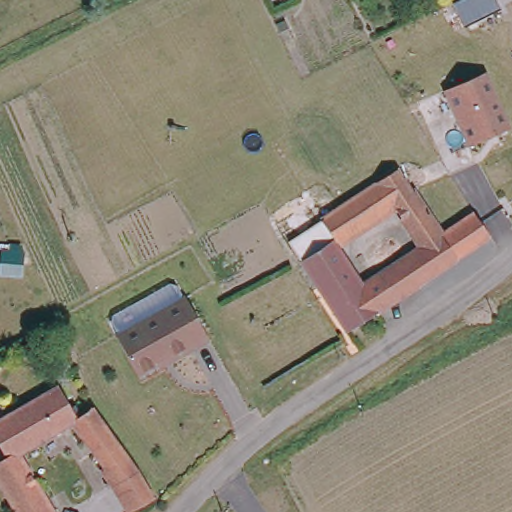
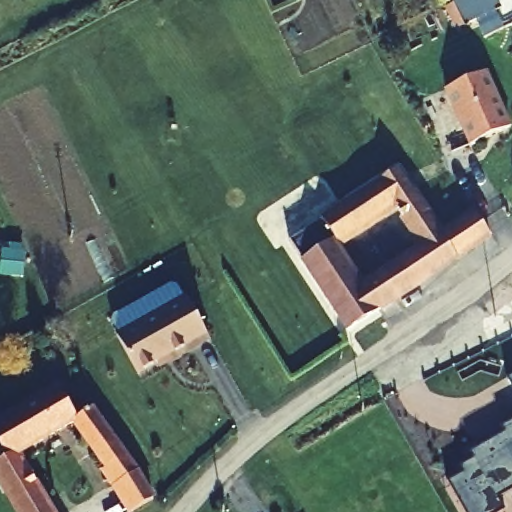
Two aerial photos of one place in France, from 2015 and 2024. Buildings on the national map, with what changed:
new [(459,0),(496,0),(501,9),(455,30),(443,8),(459,0)]
unchanged [(444,91),(487,73),(512,126),(470,145),(444,91)]
unchanged [(346,324),(302,257),(293,243),(292,243),(288,236),(363,187),(370,183),(380,176),(371,162),(388,150),(413,186),(441,229),(475,207),(482,217),(490,229),(402,288),(393,293),(377,304),(346,324)]
unchanged [(209,339),(190,349),(187,345),(138,372),(117,334),(187,294),(209,339)]
new [(507,378),(512,376),(512,386),(507,378)]
unchanged [(102,469),(107,466),(75,420),(18,454),(0,423),(0,419),(57,387),(70,407),(84,398),(119,445),(153,499),(130,512),(102,469)]
new [(497,497),(504,509),(499,512),(465,512),(448,481),(462,473),(459,467),(475,459),(472,452),(505,432),(502,426),(512,421),(512,489),(497,497)]
unchanged [(52,512),(20,512),(0,478),(0,465),(18,454),(52,512)]

